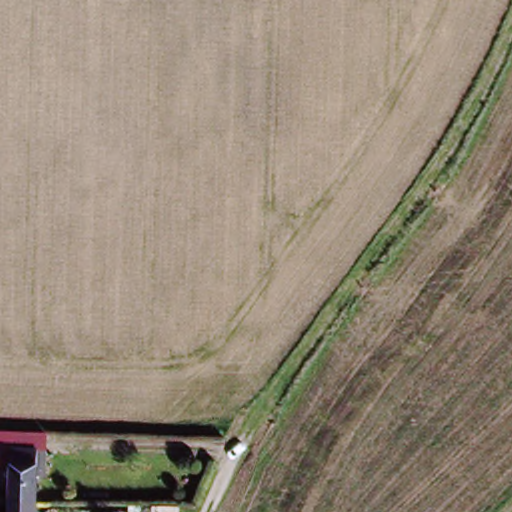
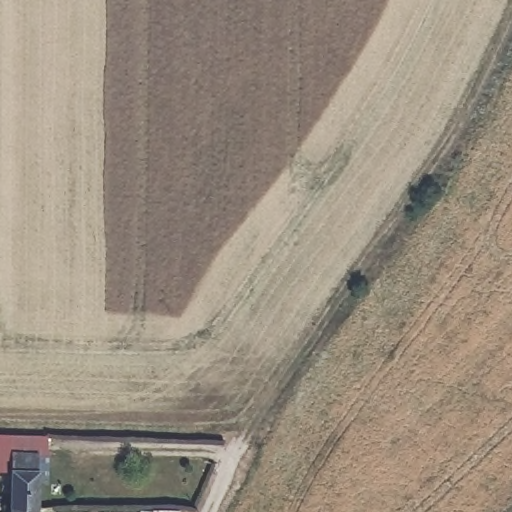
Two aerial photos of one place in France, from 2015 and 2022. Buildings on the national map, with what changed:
unchanged [(0,472),(0,441),(18,442),(48,443),(50,443),(57,444),(56,483),(48,483),(47,500),(47,509),(18,507),(18,473),(0,472)]
unchanged [(17,512),(18,507),(47,509),(47,512),(17,512)]

